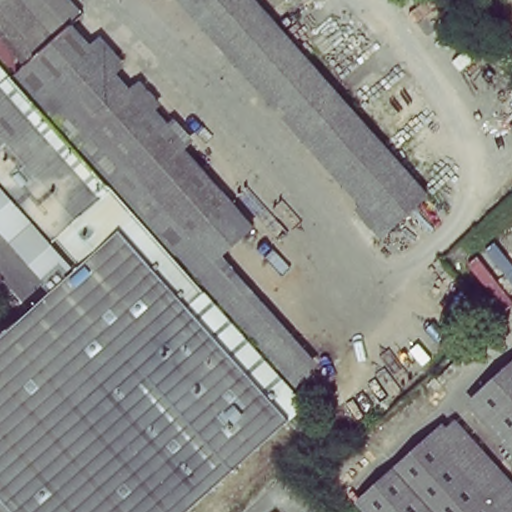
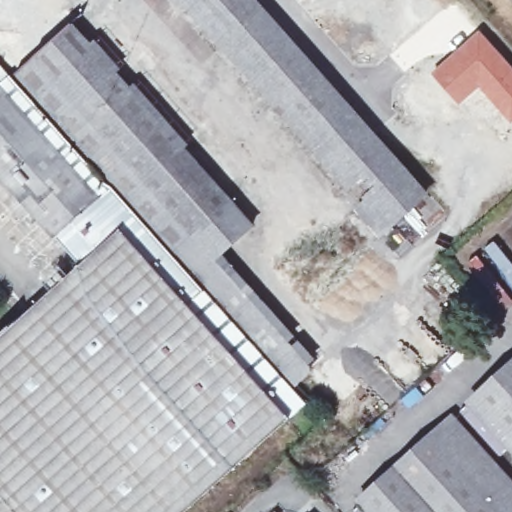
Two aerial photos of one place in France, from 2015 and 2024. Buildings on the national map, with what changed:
demolished [(0,0),(64,0),(79,16),(73,22),(23,66),(0,41),(0,0)]
unchanged [(177,0),(248,0),(422,197),(382,231),(177,0)]
unchanged [(23,66),(73,22),(131,87),(69,140),(11,77),(23,66)]
new [(479,28),(512,65),(512,121),(510,122),(479,89),(460,105),(430,72),(479,28)]
unchanged [(0,86),(0,64),(11,77),(0,86)]
unchanged [(131,87),(235,205),(195,240),(175,257),(69,140),(131,87)]
unchanged [(113,192),(131,213),(76,263),(0,177),(0,90),(100,203),(113,192)]
unchanged [(214,260),(195,240),(235,205),(253,226),(214,260)]
unchanged [(191,512),(15,512),(0,495),(0,341),(81,270),(76,263),(131,213),(308,410),(191,512)]
unchanged [(195,240),(214,260),(277,325),(255,345),(175,257),(195,240)]
unchanged [(255,345),(277,325),(317,369),(294,388),(255,345)]
unchanged [(469,405),(512,365),(512,453),(469,405)]
unchanged [(452,417),(512,483),(512,512),(365,512),(357,503),(452,417)]

